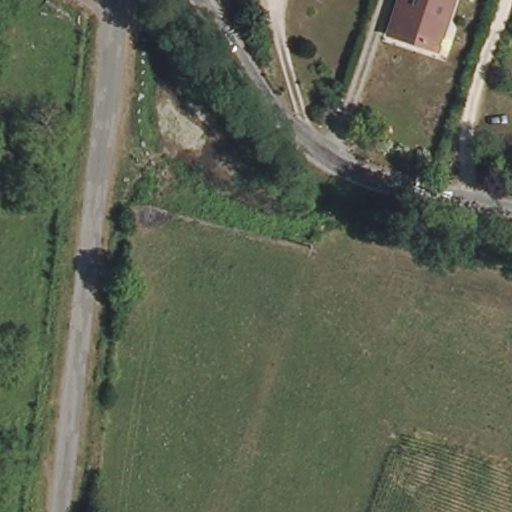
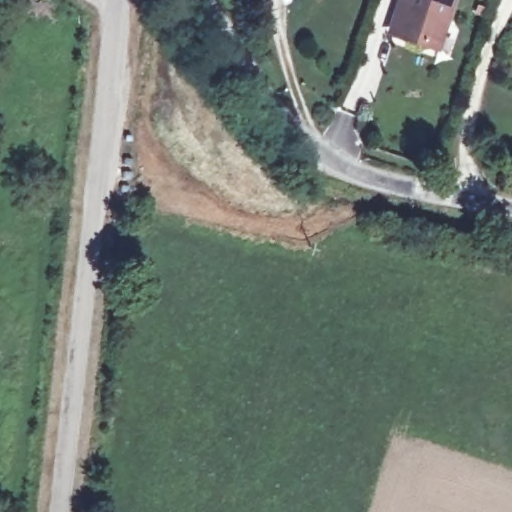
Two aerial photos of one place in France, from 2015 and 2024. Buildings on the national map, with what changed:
unchanged [(431,51),(397,39),(411,0),(456,0),(446,30),(440,28),(431,51)]

